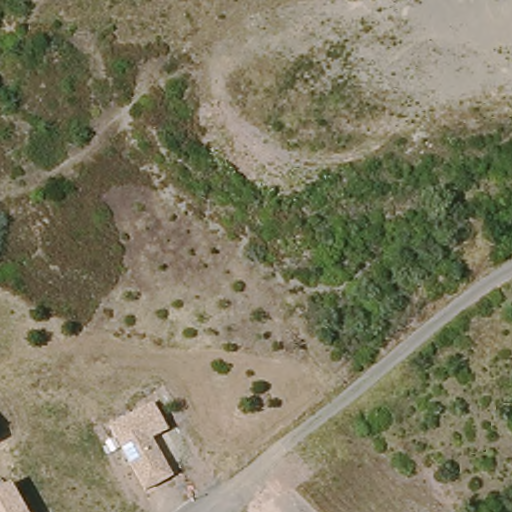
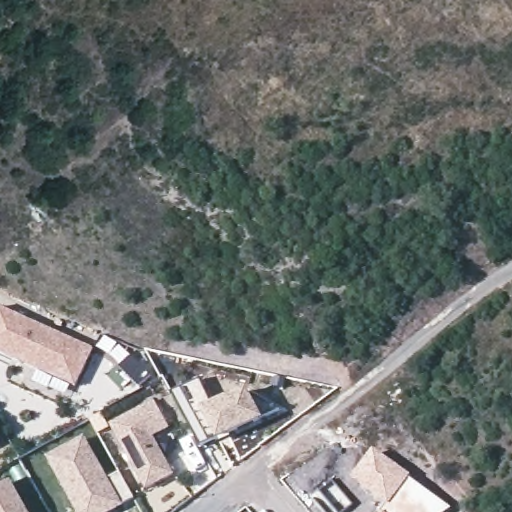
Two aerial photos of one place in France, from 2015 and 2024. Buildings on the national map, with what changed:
new [(93,347),(76,385),(0,351),(0,307),(93,347)]
new [(201,378),(211,403),(246,387),(280,409),(264,419),(218,440),(216,438),(201,447),(171,392),(201,378)]
unchanged [(153,400),(170,429),(154,437),(174,475),(144,489),(109,425),(153,400)]
new [(123,507),(113,512),(78,512),(48,457),(85,437),(123,507)]
new [(449,506),(442,512),(386,512),(384,509),(387,506),(351,478),(373,447),(449,506)]
unchanged [(28,512),(0,512),(0,488),(12,482),(28,512)]
new [(386,512),(381,512),(384,509),(386,512)]

